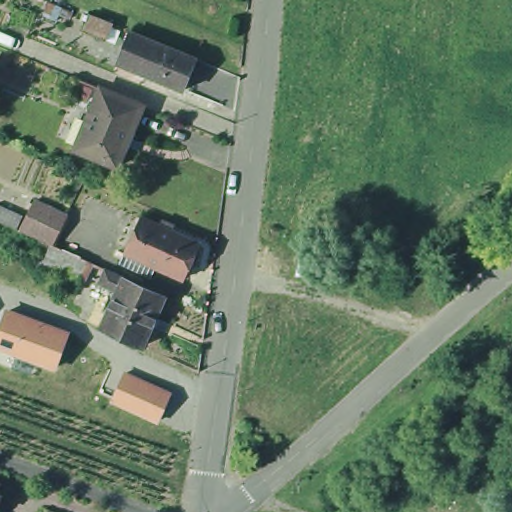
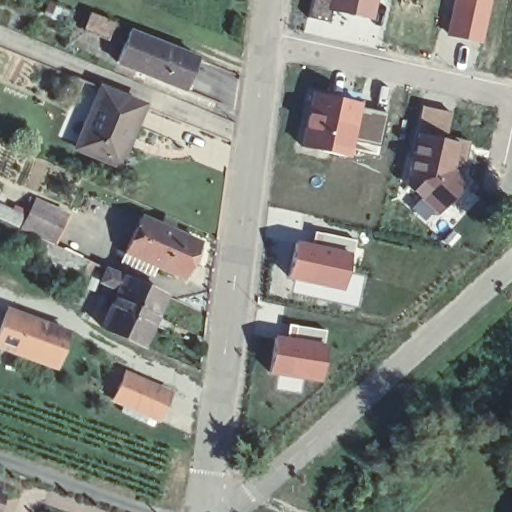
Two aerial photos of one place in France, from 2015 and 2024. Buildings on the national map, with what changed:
new [(310,0),(374,0),(369,19),(328,9),(325,20),(306,16),(310,0)]
new [(478,42),(444,35),(451,0),(487,0),(478,42)]
unchanged [(50,1),(73,11),(69,19),(47,9),(50,1)]
unchanged [(112,24),(106,39),(83,29),(89,14),(112,24)]
unchanged [(201,58),(188,90),(121,63),(134,31),(201,58)]
unchanged [(101,87),(144,104),(120,164),(78,147),(101,87)]
new [(379,148),(355,142),(352,157),(299,145),(311,89),(363,102),(362,107),(387,113),(379,148)]
new [(467,183),(439,218),(403,186),(421,106),(451,114),(446,137),(469,142),(461,178),(467,183)]
unchanged [(40,194),(71,208),(58,237),(26,223),(40,194)]
unchanged [(28,212),(23,223),(0,213),(0,204),(1,200),(28,212)]
unchanged [(123,255),(128,246),(126,245),(141,210),(201,237),(186,272),(156,259),(152,269),(123,255)]
new [(294,239),(310,242),(313,230),(354,239),(341,290),(286,278),(294,239)]
unchanged [(86,281),(65,271),(43,261),(50,244),(43,241),(46,235),(53,238),(98,258),(86,281)]
unchanged [(171,291),(146,342),(106,323),(123,286),(105,277),(111,264),(130,273),(142,278),(171,291)]
unchanged [(70,331),(55,370),(0,350),(0,328),(7,308),(70,331)]
new [(273,334),(285,335),(287,322),(326,329),(316,381),(268,373),(273,334)]
unchanged [(158,422),(111,401),(125,372),(171,391),(158,422)]
unchanged [(0,496),(0,481),(4,482),(0,496)]

